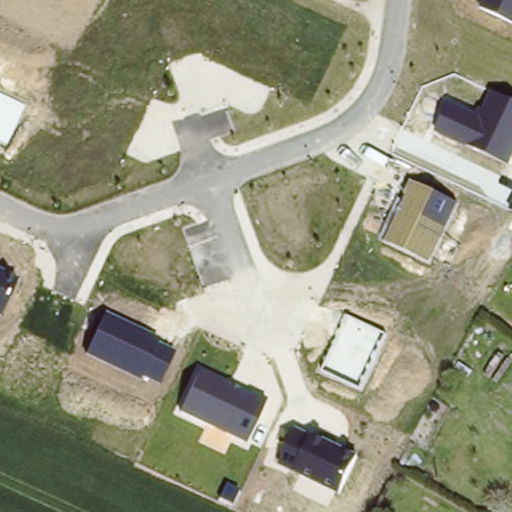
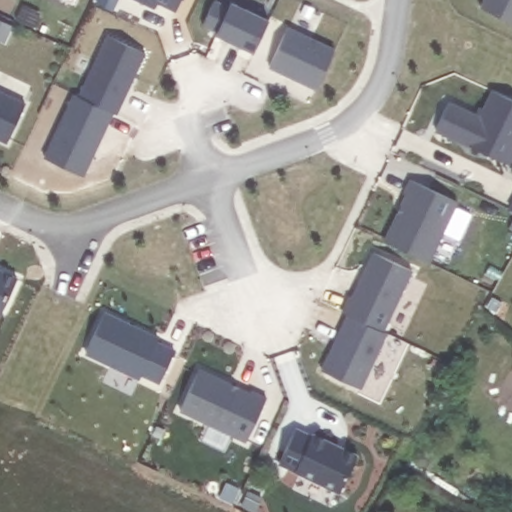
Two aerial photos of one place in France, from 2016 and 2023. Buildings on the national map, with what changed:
new [(160,4),(157,10),(136,0),(181,0),(175,11),(160,4)]
new [(212,0),(227,7),(230,1),(270,21),(253,55),(216,36),(217,31),(203,26),(212,0)]
unchanged [(483,0),(512,0),(512,24),(479,8),(483,0)]
new [(286,26),(337,50),(318,91),(270,69),(286,26)]
new [(107,35),(147,53),(120,115),(80,96),(107,35)]
unchanged [(27,104),(10,145),(0,140),(0,91),(27,104)]
unchanged [(435,134),(449,101),(475,113),(477,108),(482,110),(490,91),(512,101),(512,160),(509,166),(435,134)]
new [(76,101),(115,119),(88,179),(47,161),(76,101)]
unchanged [(378,240),(397,199),(402,201),(410,180),(458,202),(430,263),(378,240)]
unchanged [(512,203),(512,211),(509,210),(512,203)]
new [(414,273),(384,333),(347,316),(341,312),(350,296),(352,296),(372,252),(414,273)]
unchanged [(19,279),(0,317),(0,269),(19,279)]
unchanged [(158,339),(157,343),(175,351),(161,386),(142,377),(140,382),(85,356),(105,313),(158,339)]
unchanged [(347,316),(387,334),(360,390),(321,372),(347,316)]
unchanged [(267,399),(245,445),(179,413),(200,369),(267,399)]
unchanged [(310,436),(312,433),(357,455),(340,495),(278,465),(295,429),(310,436)]

